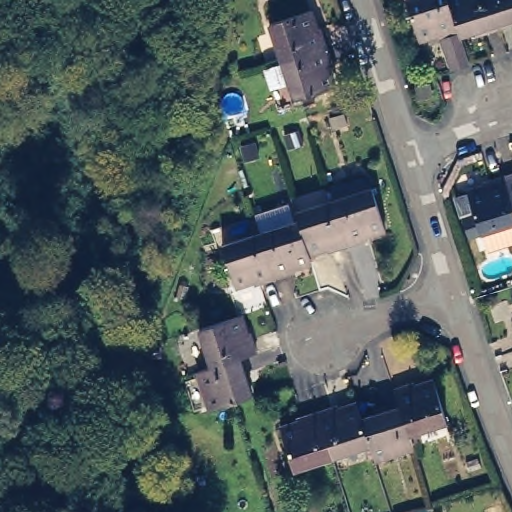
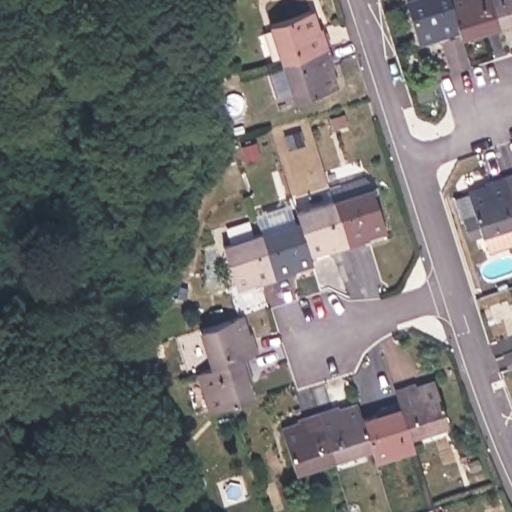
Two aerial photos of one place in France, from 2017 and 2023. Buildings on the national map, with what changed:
unchanged [(437,34),(418,39),(405,0),(448,0),(458,31),(438,38),(437,34)]
unchanged [(460,35),(458,31),(448,0),(491,0),(512,0),(512,24),(500,27),(479,34),(477,30),(460,35)]
unchanged [(269,23),(310,10),(316,29),(320,27),(327,46),(281,61),(269,23)]
unchanged [(264,69),(282,63),(281,61),(327,46),(333,66),(329,67),(335,86),(294,100),(288,84),(270,90),(264,69)]
unchanged [(329,186),(367,174),(385,229),(366,235),(367,239),(347,245),(333,200),(329,186)]
unchanged [(505,176),(512,174),(512,200),(505,176)]
unchanged [(489,250),(483,233),(480,234),(480,233),(468,237),(462,220),(474,215),(467,192),(487,186),(485,183),(505,176),(512,200),(512,242),(489,250)]
unchanged [(295,212),(333,200),(347,245),(329,250),(328,247),(308,253),(297,220),(295,212)]
unchanged [(297,220),(308,253),(311,262),(292,268),(294,272),(275,278),(260,231),(297,220)]
unchanged [(275,278),(256,285),(255,280),(235,287),(222,244),(260,231),(275,278)]
unchanged [(238,352),(234,353),(207,362),(195,323),(235,311),(242,329),(245,327),(252,348),(238,352)]
unchanged [(244,371),(240,372),(246,391),(227,397),(205,404),(194,366),(207,362),(234,353),(238,352),(244,371)]
unchanged [(399,398),(394,383),(413,377),(415,382),(434,375),(447,417),(409,429),(399,398)]
unchanged [(337,400),(337,404),(357,398),(362,415),(370,440),(332,452),(317,406),(337,400)]
unchanged [(362,415),(380,409),(379,405),(399,398),(409,429),(413,442),(375,455),(370,440),(362,415)]
unchanged [(332,452),(294,465),(280,422),(300,416),(298,412),(317,406),(332,452)]

